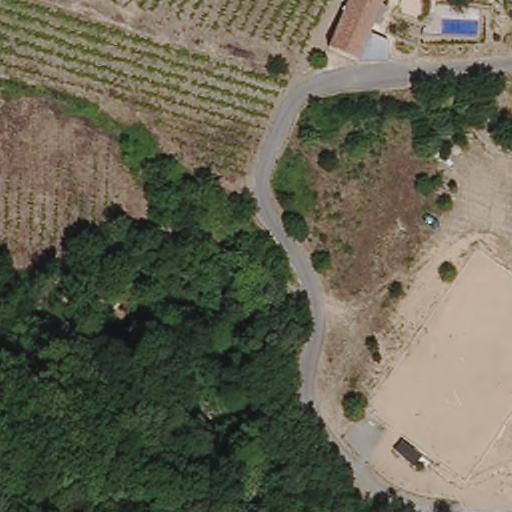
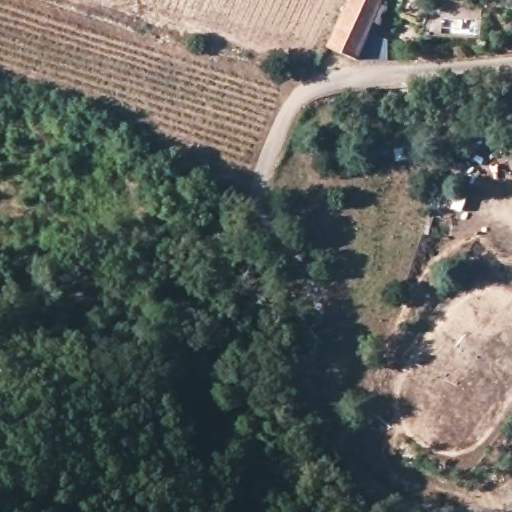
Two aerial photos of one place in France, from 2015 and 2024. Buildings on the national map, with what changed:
unchanged [(401,5),(407,7),(404,15),(399,14),(379,61),(335,46),(355,0),(403,0),(401,5)]

